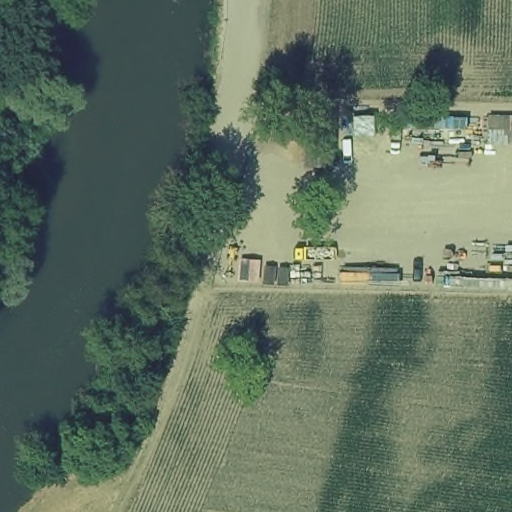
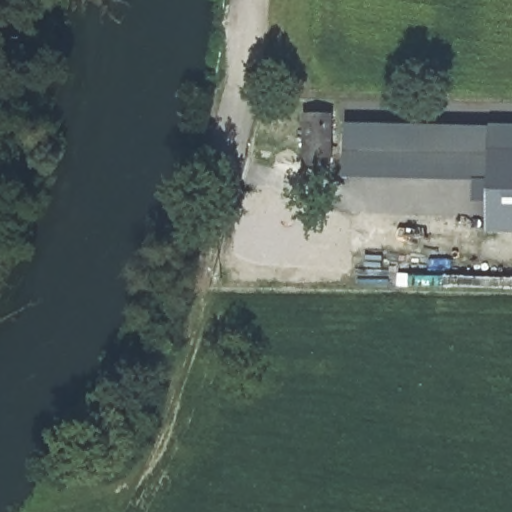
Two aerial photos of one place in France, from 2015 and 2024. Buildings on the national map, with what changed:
demolished [(340,111),(340,146),(306,144),(307,111),(340,111)]
demolished [(512,112),(512,134),(398,136),(396,114),(512,112)]
new [(307,116),(332,116),(331,166),(307,166),(307,116)]
new [(347,125),(512,127),(512,233),(490,232),(490,183),(345,179),(347,125)]

